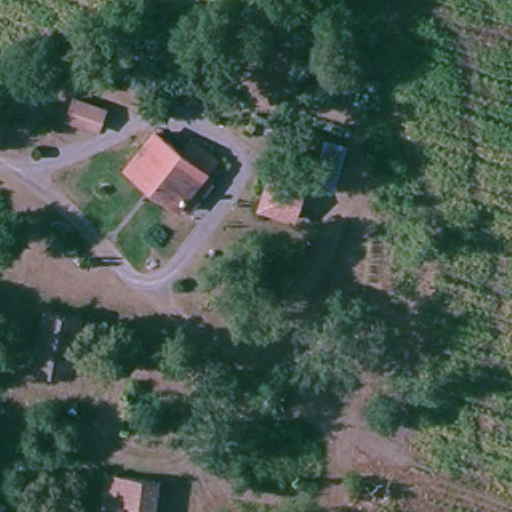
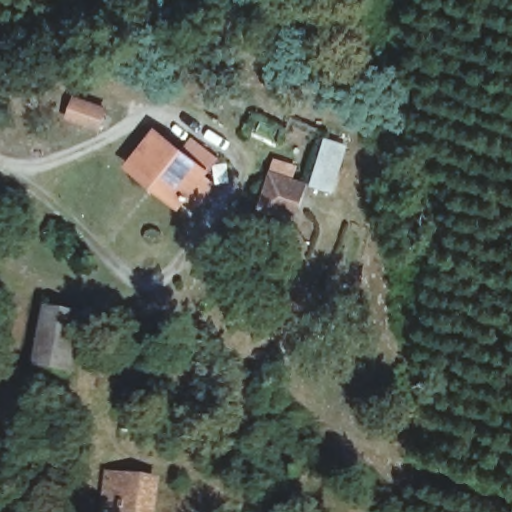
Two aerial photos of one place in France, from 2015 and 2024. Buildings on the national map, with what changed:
unchanged [(41,135),(0,135),(0,95),(40,94),(41,135)]
unchanged [(205,195),(187,204),(165,198),(166,193),(125,169),(146,131),(175,147),(182,135),(210,151),(201,165),(205,195)]
unchanged [(295,224),(265,226),(263,180),(292,179),(295,224)]
unchanged [(34,313),(69,313),(70,367),(35,370),(34,313)]
unchanged [(102,512),(100,483),(154,480),(155,512),(102,512)]

